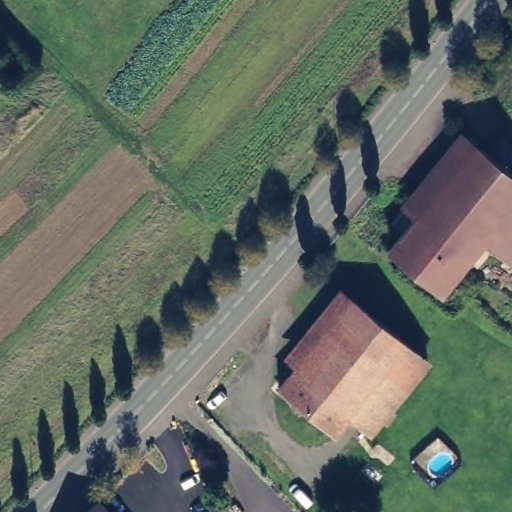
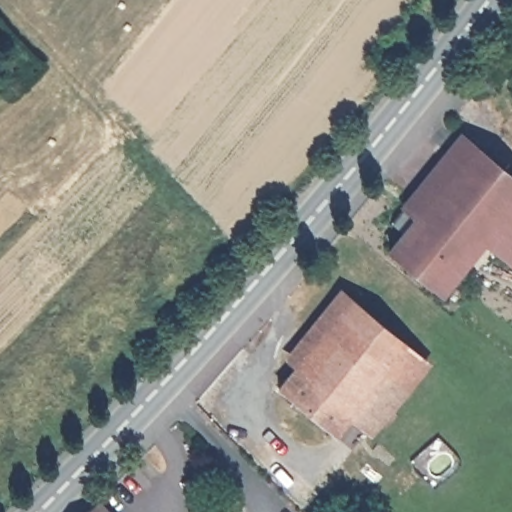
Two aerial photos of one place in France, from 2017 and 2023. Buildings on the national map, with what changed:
unchanged [(512,175),(512,260),(510,262),(486,242),(469,261),(459,252),(446,267),(451,272),(435,290),(383,245),(402,223),(388,211),(404,191),(419,203),(471,140),(512,175)]
unchanged [(281,397),(284,392),(269,380),(339,294),(414,357),(359,422),(339,405),(323,424),(294,400),(289,405),(281,397)]
unchanged [(103,503),(112,512),(93,512),(103,503)]

